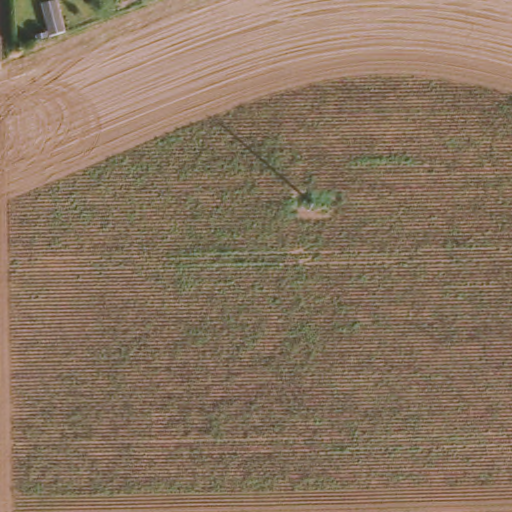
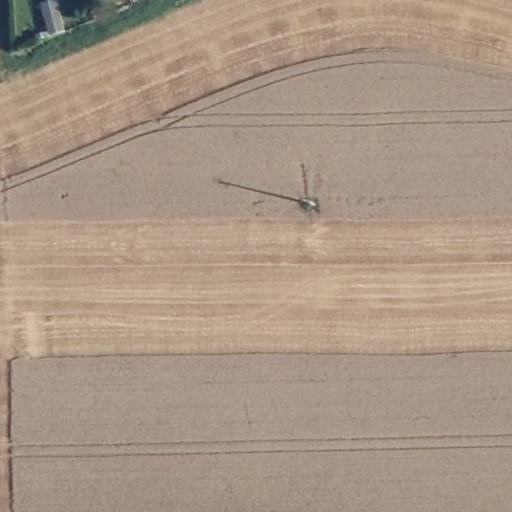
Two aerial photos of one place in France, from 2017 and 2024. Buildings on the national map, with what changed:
unchanged [(55,36),(43,4),(55,0),(57,0),(66,31),(55,36)]

